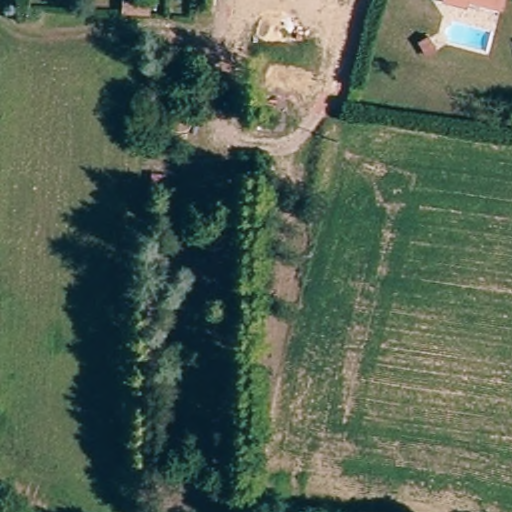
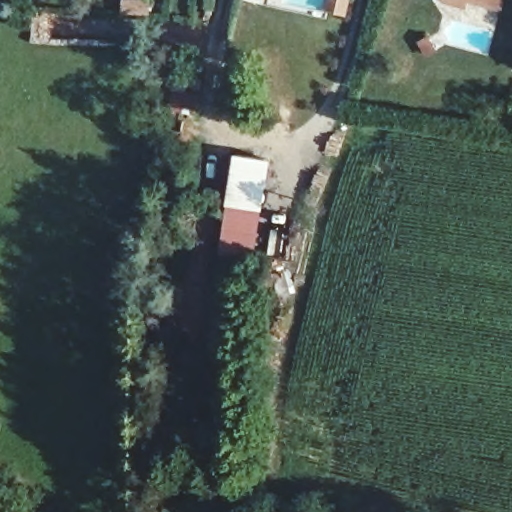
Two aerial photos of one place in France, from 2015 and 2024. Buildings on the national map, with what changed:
unchanged [(142,0),(154,0),(146,4),(142,0)]
new [(235,154),(273,159),(264,210),(229,205),(235,154)]
new [(229,205),(264,210),(258,261),(223,254),(229,205)]

